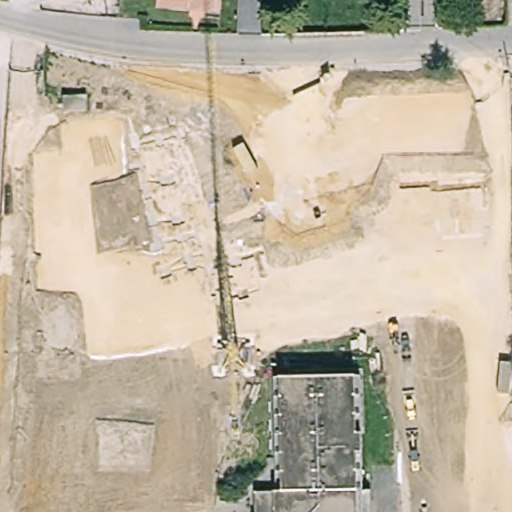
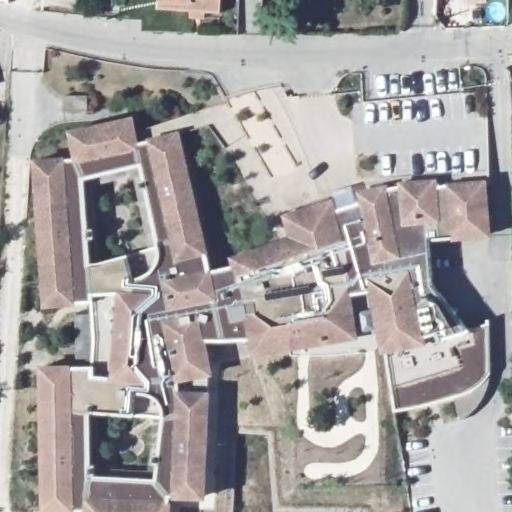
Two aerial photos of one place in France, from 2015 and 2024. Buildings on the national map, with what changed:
unchanged [(174,0),(232,0),(232,14),(173,11),(174,0)]
demolished [(98,126),(71,134),(67,116),(93,109),(98,126)]
new [(43,512),(40,367),(93,366),(91,303),(45,308),(35,160),(76,160),(68,131),(135,117),(140,144),(179,133),(213,272),(235,266),(230,256),(286,238),(282,214),(335,202),(336,211),(361,203),(358,192),(437,181),(438,187),(488,181),(490,238),(428,242),(430,283),(468,331),(488,328),(489,377),(472,392),(395,411),(384,353),(291,356),(290,350),(255,356),(252,338),(206,341),(212,375),(211,393),(206,501),(171,501),(170,512),(84,512),(85,510),(75,511),(43,512)]
demolished [(264,496),(279,496),(281,382),(295,381),(327,382),(355,382),(354,442),(360,442),(359,499),(350,499),(350,512),(263,512),(264,496)]

